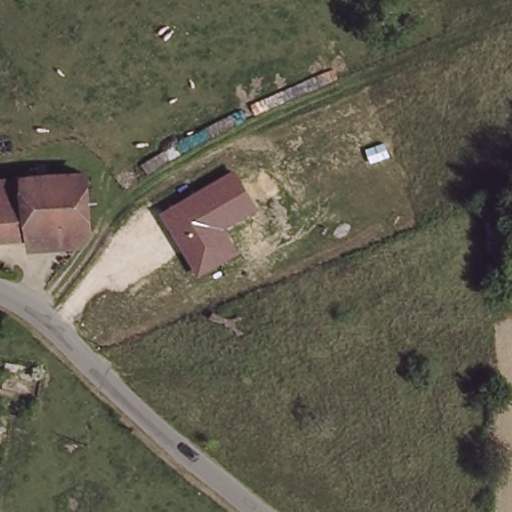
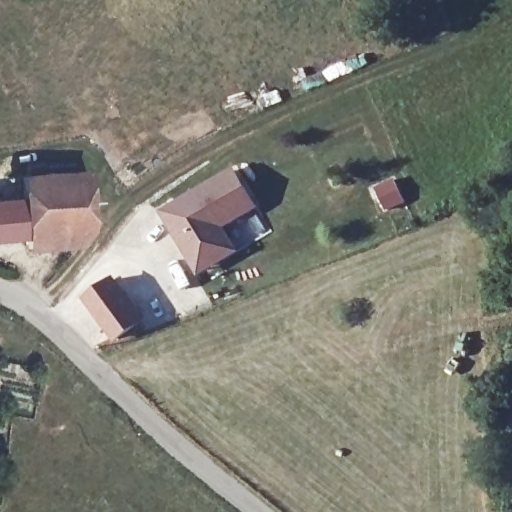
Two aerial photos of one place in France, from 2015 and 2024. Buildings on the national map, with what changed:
unchanged [(235,167),(258,207),(223,228),(238,251),(198,275),(161,211),(235,167)]
unchanged [(76,254),(27,260),(24,242),(0,244),(0,179),(90,170),(95,227),(76,254)]
unchanged [(494,283),(482,236),(512,230),(512,274),(494,283)]
new [(115,342),(83,298),(115,276),(146,320),(115,342)]

